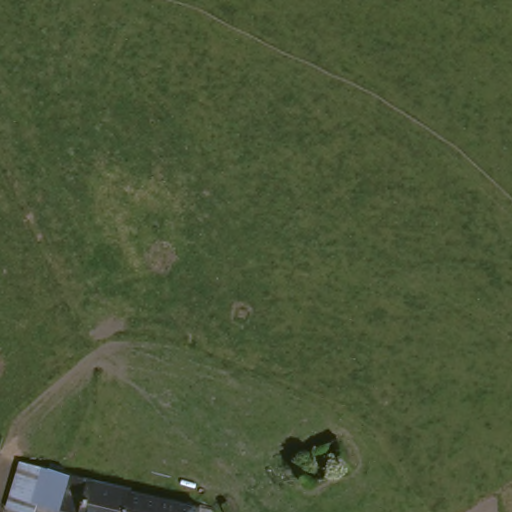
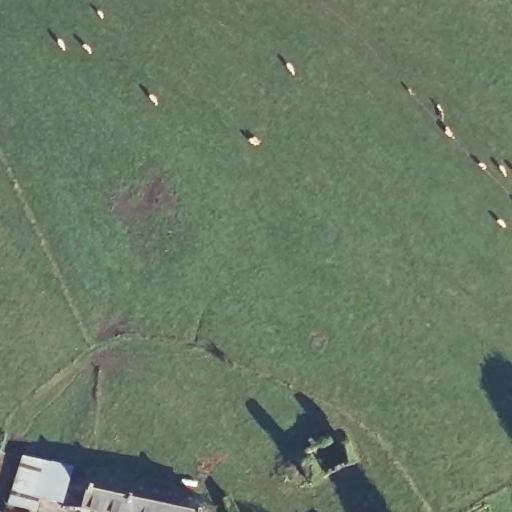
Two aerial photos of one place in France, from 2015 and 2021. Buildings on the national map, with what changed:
unchanged [(46,467),(33,511),(8,506),(19,461),(46,467)]
unchanged [(128,482),(126,487),(193,504),(192,512),(90,512),(58,503),(68,467),(128,482)]

